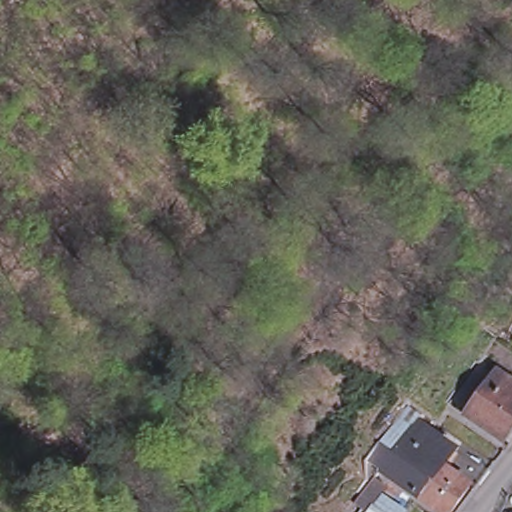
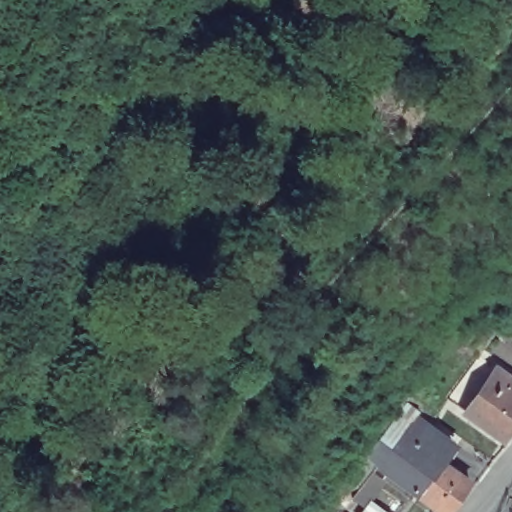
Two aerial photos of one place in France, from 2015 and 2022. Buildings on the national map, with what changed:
unchanged [(512,379),(512,426),(500,440),(465,409),(500,368),(512,379)]
unchanged [(455,448),(442,464),(418,496),(377,467),(413,419),(455,448)]
unchanged [(470,484),(450,512),(439,512),(418,496),(442,464),(470,484)]
unchanged [(371,495),(393,512),(360,512),(371,495)]
unchanged [(341,507),(348,512),(338,512),(341,507)]

